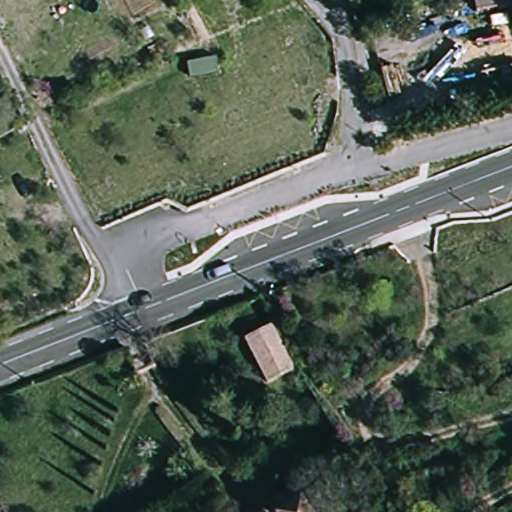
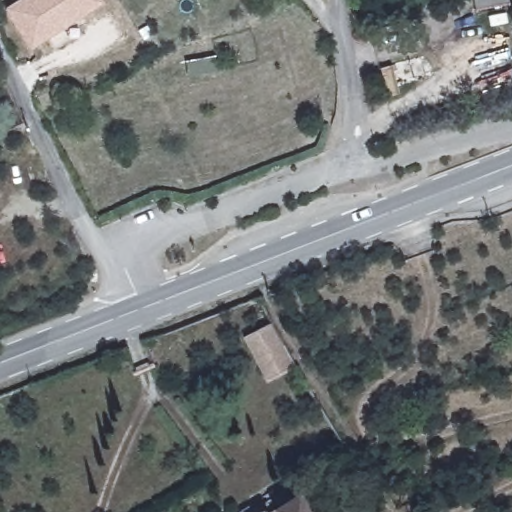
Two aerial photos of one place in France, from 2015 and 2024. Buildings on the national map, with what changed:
new [(5,9),(19,0),(103,0),(106,4),(32,51),(5,9)]
unchanged [(476,11),(475,0),(508,0),(508,5),(476,11)]
unchanged [(250,344),(276,329),(302,374),(276,389),(250,344)]
unchanged [(265,507),(297,489),(304,500),(311,512),(256,512),(265,507)]

